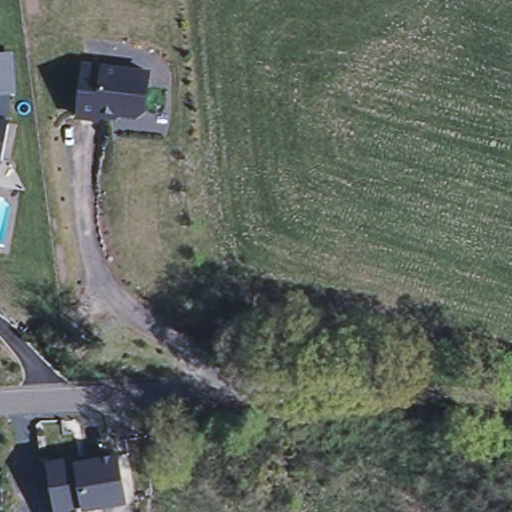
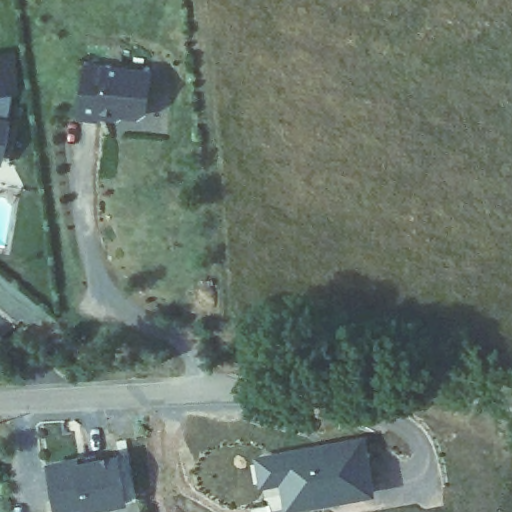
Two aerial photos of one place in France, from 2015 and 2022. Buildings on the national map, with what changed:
unchanged [(10,52),(12,89),(9,90),(4,122),(0,121),(0,53),(10,52)]
unchanged [(148,74),(145,113),(137,118),(99,115),(98,121),(78,119),(84,67),(148,74)]
unchanged [(4,122),(0,142),(0,121),(4,122)]
new [(372,493),(269,511),(259,458),(362,439),(372,493)]
unchanged [(84,463),(123,456),(130,501),(105,505),(106,512),(59,512),(51,463),(77,459),(84,463)]

